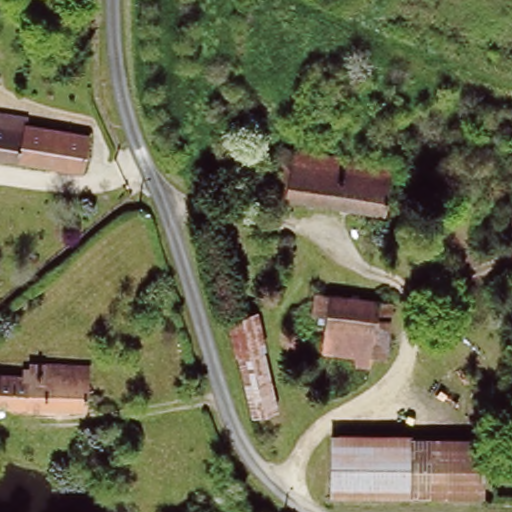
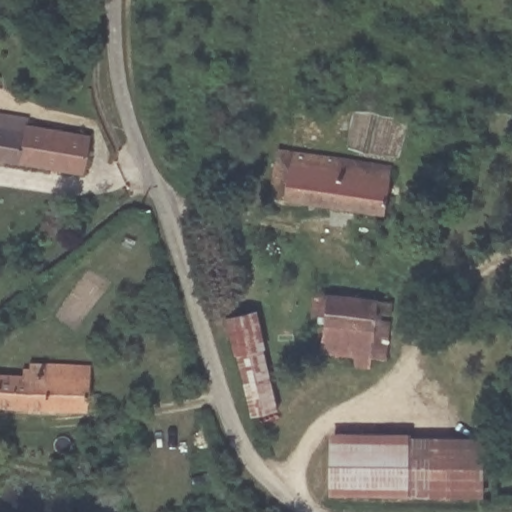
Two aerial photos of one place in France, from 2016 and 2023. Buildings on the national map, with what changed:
unchanged [(26,122),(25,131),(88,140),(83,177),(0,166),(0,119),(26,122)]
unchanged [(392,166),(385,212),(269,193),(276,148),(392,166)]
unchanged [(382,300),(374,359),(323,353),(326,329),(311,328),(316,291),(382,300)]
unchanged [(264,314),(284,412),(250,419),(231,319),(264,314)]
unchanged [(20,375),(20,367),(27,368),(27,361),(85,362),(83,410),(0,409),(0,375),(20,375)]
unchanged [(418,437),(416,496),(344,494),(346,435),(418,437)]
unchanged [(489,440),(488,498),(442,497),(416,496),(418,437),(443,438),(489,440)]

